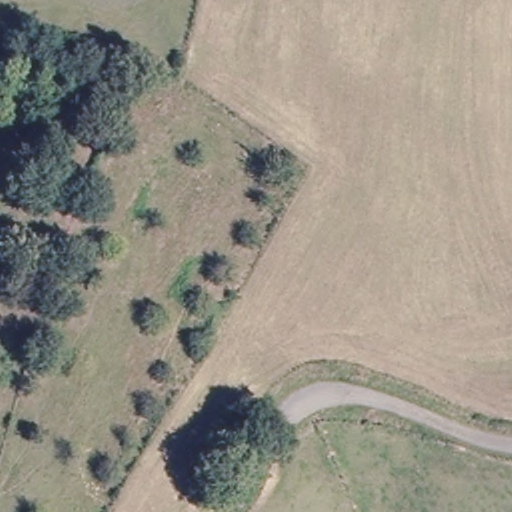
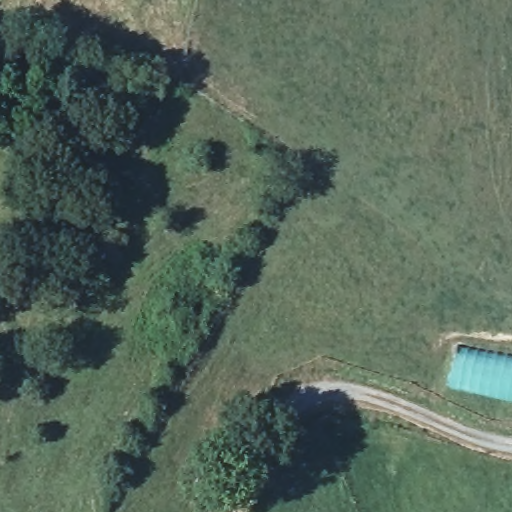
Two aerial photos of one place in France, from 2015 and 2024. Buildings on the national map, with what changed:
new [(512,355),(512,396),(451,385),(458,346),(512,355)]

